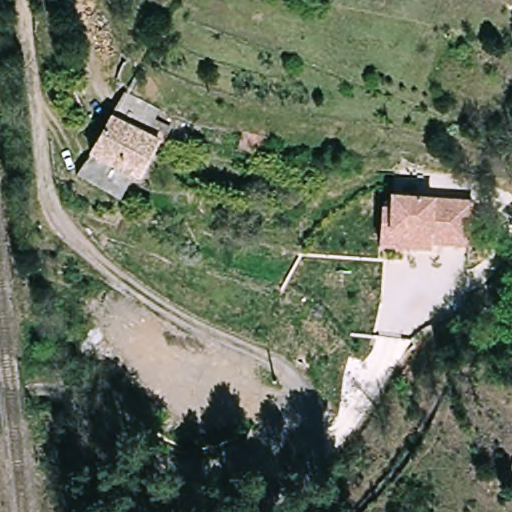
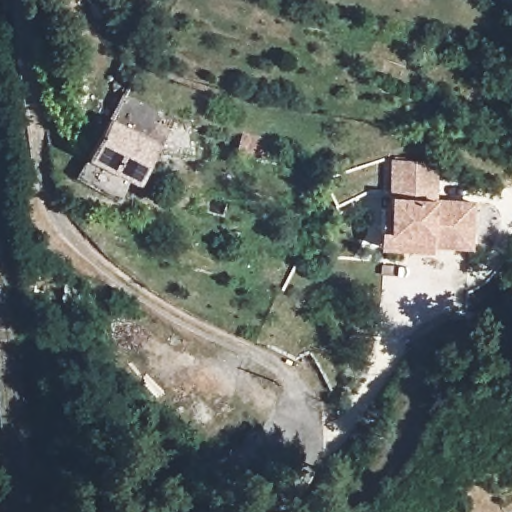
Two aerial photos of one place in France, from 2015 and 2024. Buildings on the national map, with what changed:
unchanged [(192,131),(188,151),(156,144),(136,180),(122,202),(74,174),(85,156),(108,115),(145,134),(152,120),(192,131)]
unchanged [(271,138),(267,155),(236,147),(242,131),(271,138)]
new [(391,163),(438,164),(436,201),(386,203),(391,163)]
unchanged [(380,240),(379,217),(387,217),(386,203),(470,199),(472,246),(433,247),(433,254),(381,257),(380,240)]
unchanged [(34,458),(32,442),(46,440),(48,456),(34,458)]

